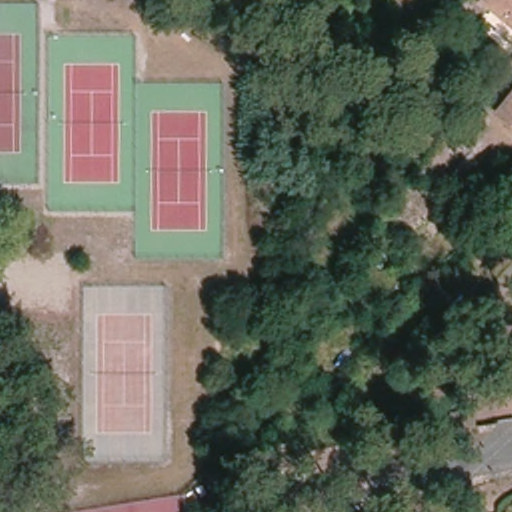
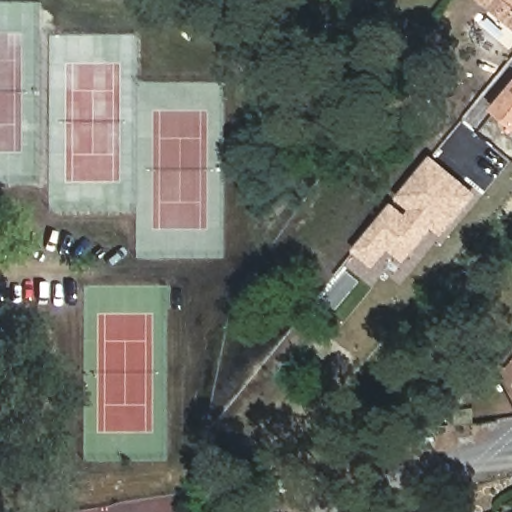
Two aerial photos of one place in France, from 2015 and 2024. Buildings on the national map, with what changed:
unchanged [(483,0),(512,0),(512,29),(480,3),(483,0)]
unchanged [(512,100),(512,125),(499,115),(512,100)]
new [(354,252),(434,157),(480,195),(446,236),(438,228),(406,265),(390,252),(375,269),(354,252)]
unchanged [(512,357),(512,367),(507,362),(512,357)]
unchanged [(419,452),(416,437),(433,434),(435,449),(419,452)]
unchanged [(388,456),(385,441),(401,439),(403,453),(388,456)]
unchanged [(356,462),(354,447),(369,444),(372,459),(356,462)]
unchanged [(313,470),(310,455),(325,452),(328,467),(313,470)]
unchanged [(270,478),(267,463),(281,461),(284,475),(270,478)]
unchanged [(241,487),(242,472),(256,472),(256,488),(241,487)]
unchanged [(213,492),(213,474),(228,474),(229,491),(213,492)]

